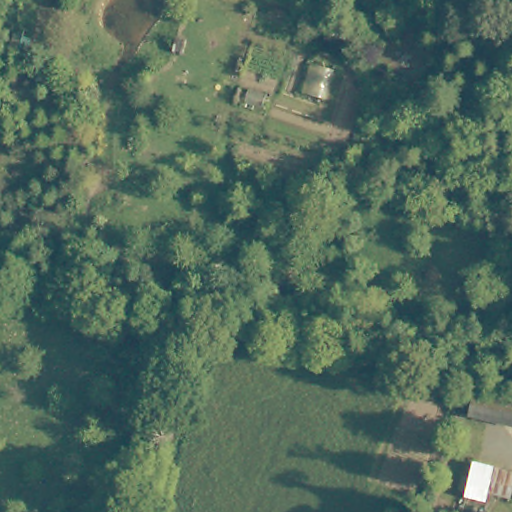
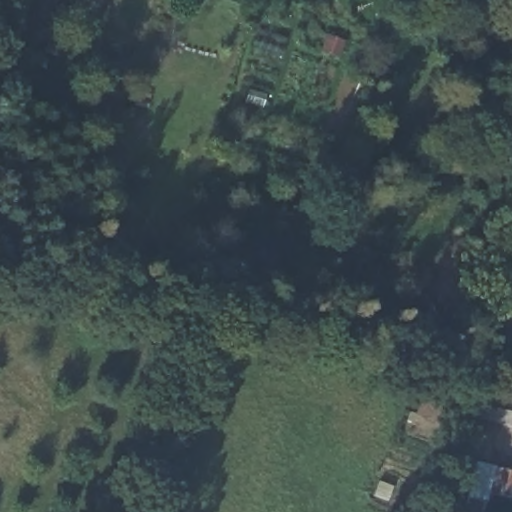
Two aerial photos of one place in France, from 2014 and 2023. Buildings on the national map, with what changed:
unchanged [(473,388),(512,397),(512,423),(469,413),(473,388)]
unchanged [(502,492),(467,483),(473,458),(507,467),(502,492)]

